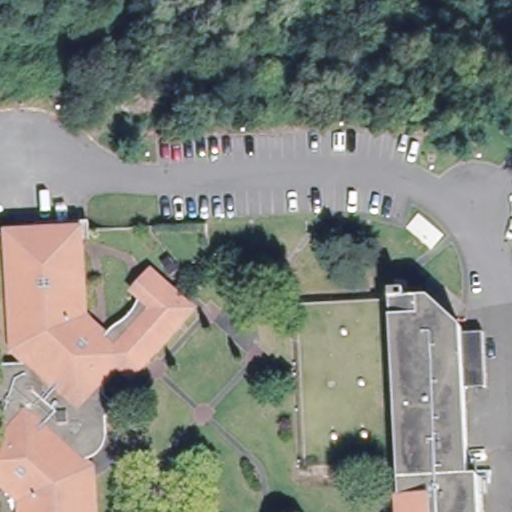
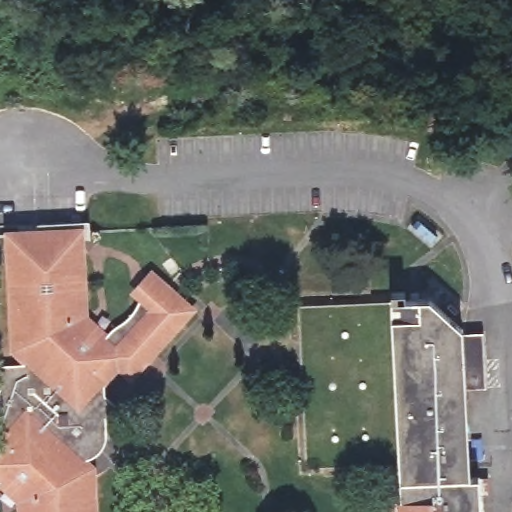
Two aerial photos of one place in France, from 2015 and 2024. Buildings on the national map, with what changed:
unchanged [(0,371),(25,370),(24,348),(15,348),(10,240),(81,236),(87,336),(101,350),(113,336),(128,325),(142,305),(135,300),(154,280),(169,293),(194,315),(133,383),(115,367),(105,378),(107,401),(120,412),(109,425),(109,443),(106,453),(96,464),(86,467),(87,483),(95,483),(97,512),(24,512),(24,495),(8,481),(0,491),(0,459),(4,455),(0,371)]
unchanged [(481,474),(482,512),(401,512),(399,470),(295,472),(288,296),(431,291),(466,322),(466,328),(469,385),(474,474),(481,474)]
unchanged [(493,383),(469,385),(466,328),(489,327),(493,383)]

